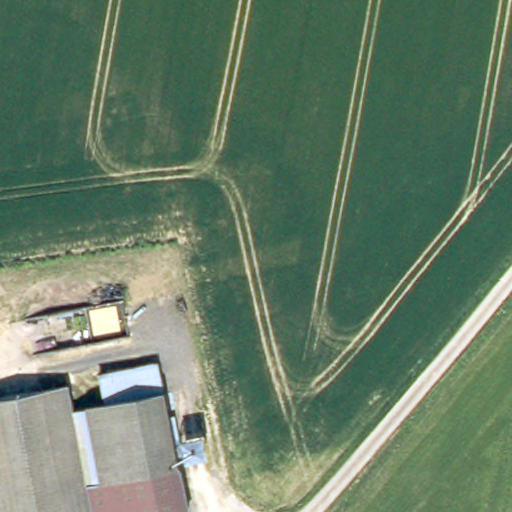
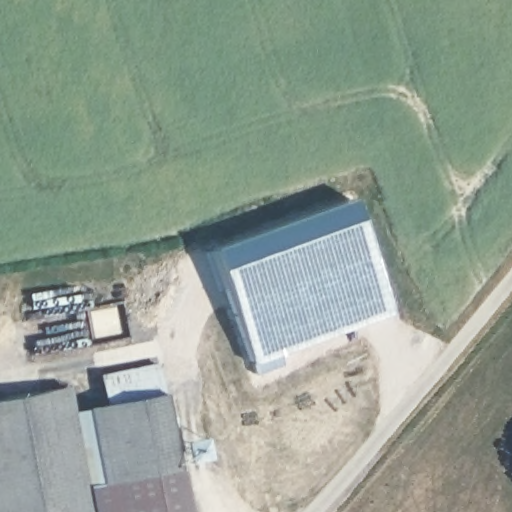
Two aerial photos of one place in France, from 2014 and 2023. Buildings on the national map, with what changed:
new [(247,366),(207,248),(350,198),(390,316),(247,366)]
unchanged [(163,365),(170,388),(110,401),(106,376),(163,365)]
unchanged [(194,512),(0,512),(0,398),(72,385),(77,409),(110,401),(170,388),(194,512)]
unchanged [(209,434),(214,454),(192,459),(187,439),(209,434)]

